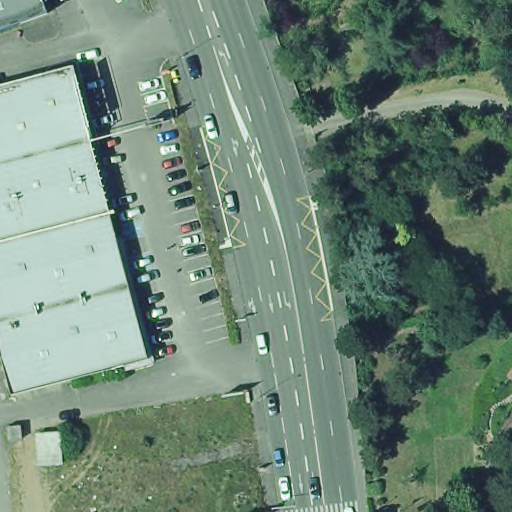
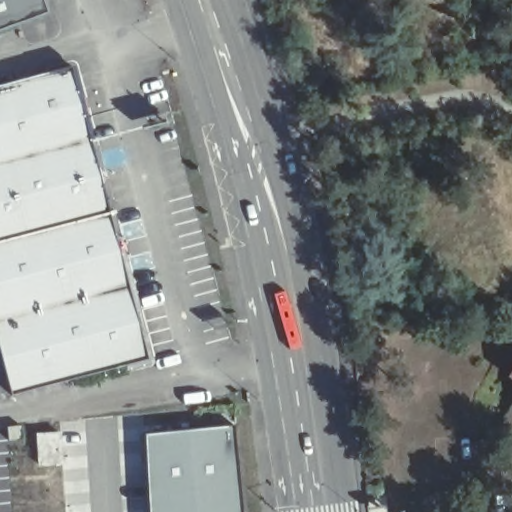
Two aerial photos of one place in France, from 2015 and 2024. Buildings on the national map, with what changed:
unchanged [(0,32),(0,0),(42,0),(47,15),(0,32)]
unchanged [(77,84),(0,104),(0,84),(73,67),(77,84)]
unchanged [(102,186),(0,214),(0,104),(77,84),(102,186)]
unchanged [(110,218),(0,243),(0,214),(102,186),(110,218)]
unchanged [(114,234),(0,265),(0,243),(110,218),(114,234)]
unchanged [(146,362),(10,395),(0,356),(0,265),(114,234),(146,362)]
unchanged [(512,365),(512,380),(505,376),(512,365)]
new [(241,512),(150,512),(143,435),(233,426),(241,512)]
unchanged [(20,427),(21,441),(6,441),(6,428),(20,427)]
unchanged [(60,434),(61,465),(39,465),(37,435),(60,434)]

